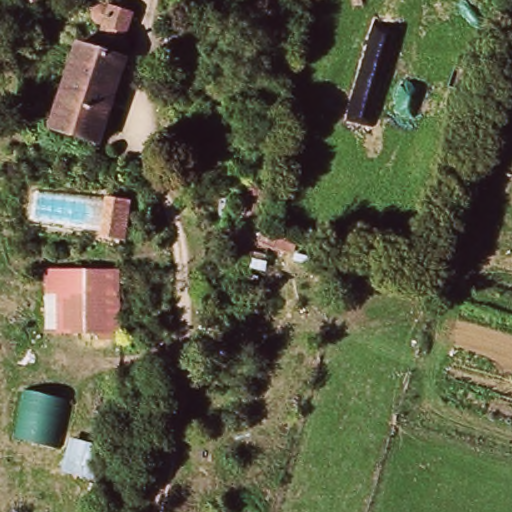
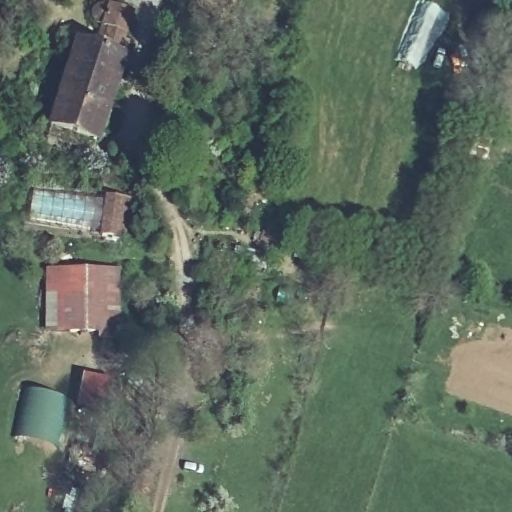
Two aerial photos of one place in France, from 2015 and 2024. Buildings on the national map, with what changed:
unchanged [(44,6),(18,8),(17,0),(43,0),(44,6)]
unchanged [(98,42),(101,30),(80,25),(85,6),(121,15),(113,46),(98,42)]
unchanged [(98,143),(48,132),(72,50),(119,63),(98,143)]
unchanged [(102,198),(102,193),(135,197),(129,241),(99,240),(100,228),(26,217),(33,188),(102,198)]
unchanged [(94,272),(95,331),(65,331),(64,273),(94,272)]
unchanged [(112,272),(112,331),(95,331),(94,272),(112,272)]
unchanged [(43,332),(43,273),(64,273),(65,331),(43,332)]
unchanged [(10,432),(18,387),(68,396),(57,447),(10,432)]
unchanged [(103,441),(95,480),(59,471),(68,433),(103,441)]

